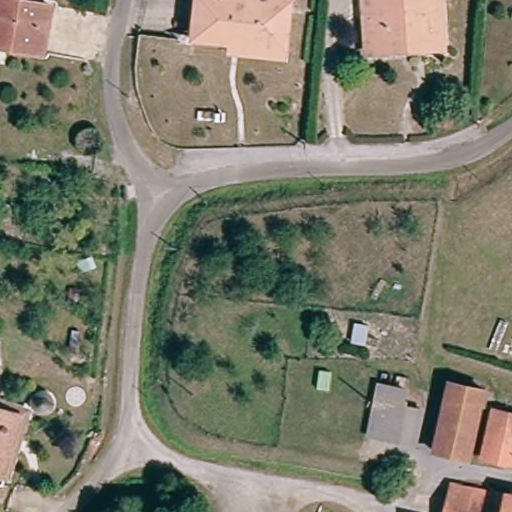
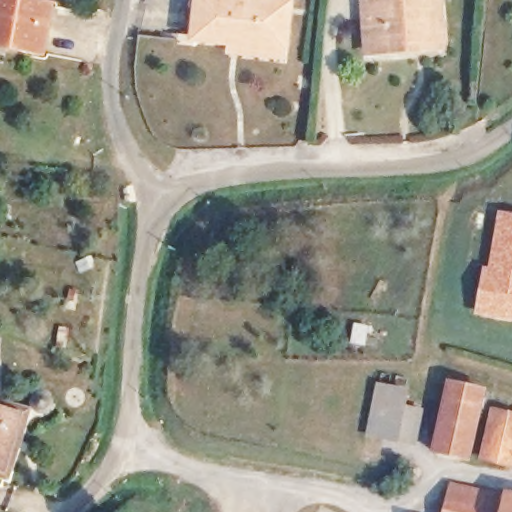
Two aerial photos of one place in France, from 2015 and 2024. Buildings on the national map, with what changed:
unchanged [(35,54),(0,46),(0,0),(27,0),(47,4),(35,54)]
unchanged [(200,0),(287,0),(286,10),(281,51),(279,71),(229,65),(231,53),(194,49),(200,0)]
unchanged [(367,7),(367,0),(443,0),(441,58),(409,58),(367,58),(367,46),(367,7)]
new [(482,265),(487,266),(497,210),(512,213),(512,322),(472,315),(482,265)]
unchanged [(412,448),(398,445),(369,439),(377,389),(408,391),(404,413),(418,415),(412,448)]
unchanged [(467,462),(434,454),(452,389),(484,397),(467,462)]
unchanged [(0,475),(0,414),(31,424),(14,481),(0,475)]
unchanged [(482,457),(495,414),(512,418),(512,467),(482,457)]
unchanged [(461,495),(512,507),(512,512),(457,512),(461,495)]

